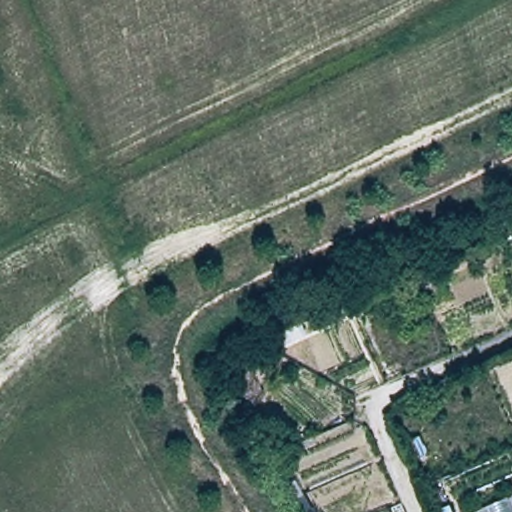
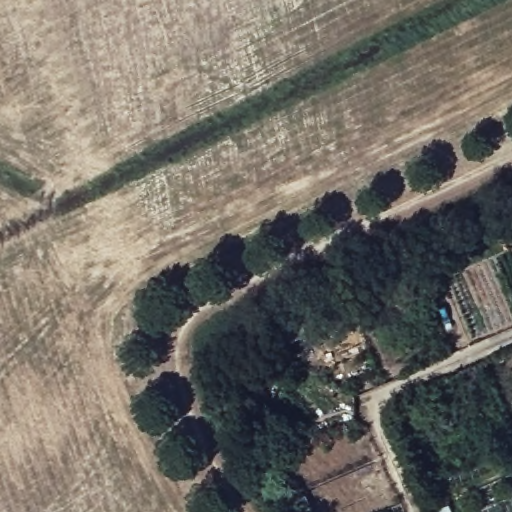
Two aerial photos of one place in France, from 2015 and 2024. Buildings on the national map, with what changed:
unchanged [(267,335),(346,303),(350,319),(274,352),(267,335)]

